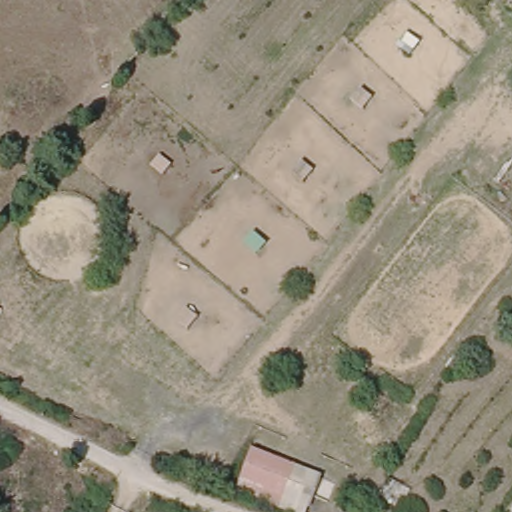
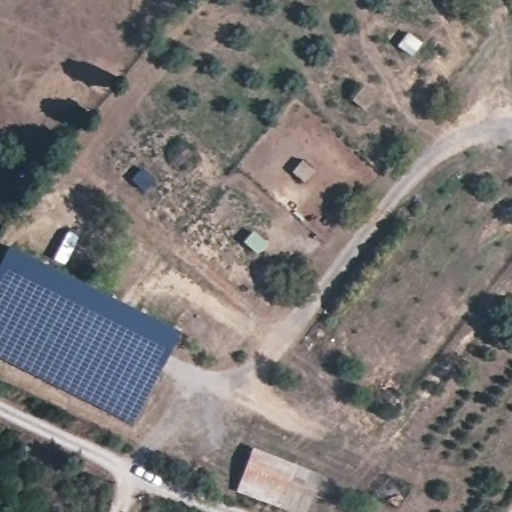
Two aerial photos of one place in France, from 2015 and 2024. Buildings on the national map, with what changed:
new [(181,331),(132,425),(0,359),(0,261),(8,245),(181,331)]
unchanged [(249,447),(320,473),(304,512),(287,512),(233,491),(249,447)]

